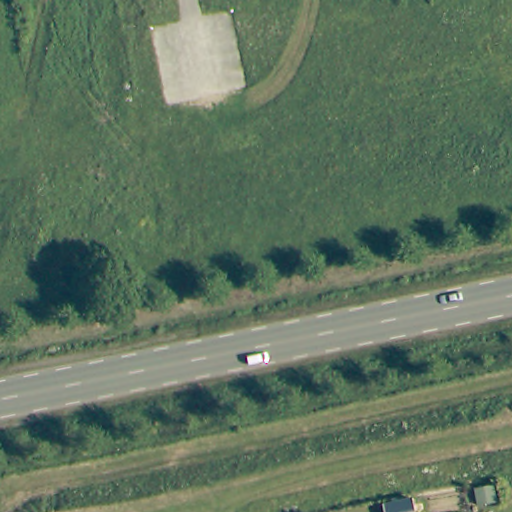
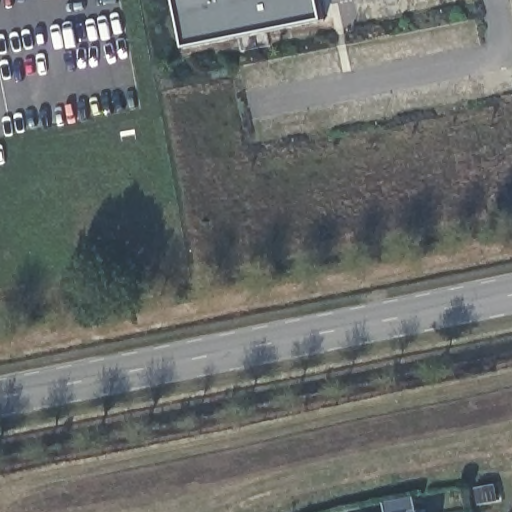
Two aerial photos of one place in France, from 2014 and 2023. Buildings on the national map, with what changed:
new [(325,20),(182,50),(173,0),(321,0),(325,20)]

